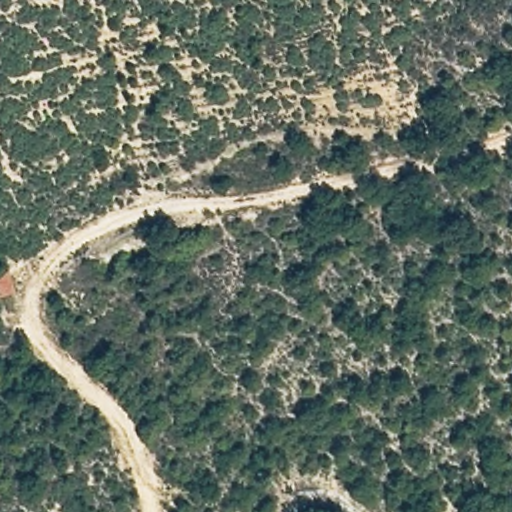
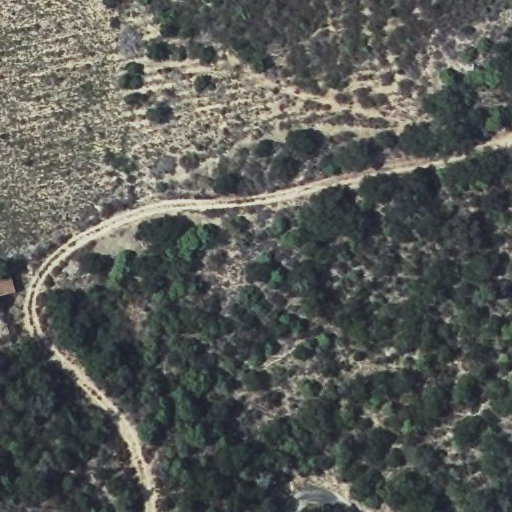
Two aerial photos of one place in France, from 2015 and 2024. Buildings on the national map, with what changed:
unchanged [(16,267),(23,295),(0,300),(0,272),(16,267)]

